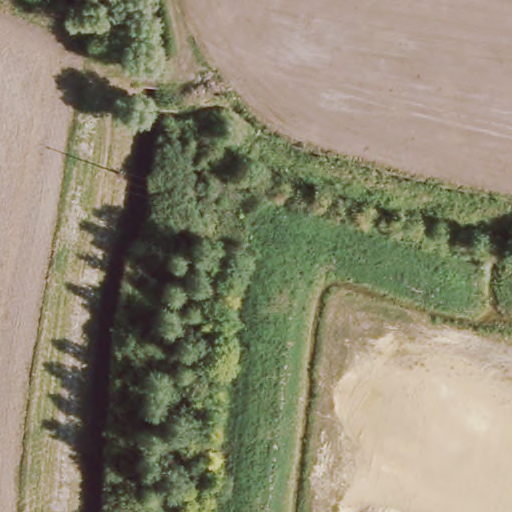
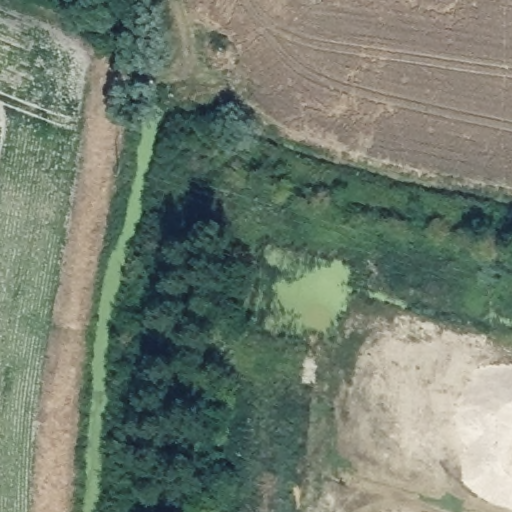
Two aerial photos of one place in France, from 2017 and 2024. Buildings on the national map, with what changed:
[]

